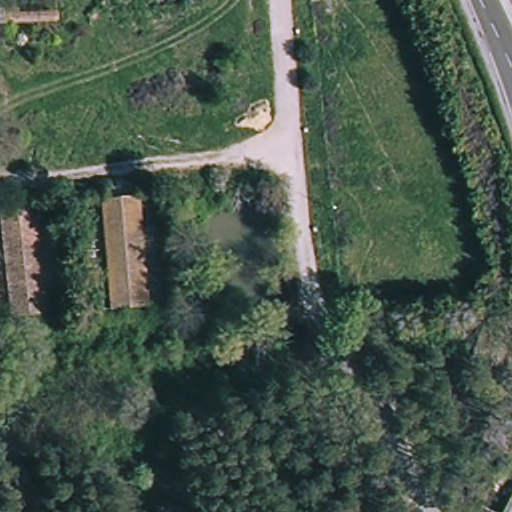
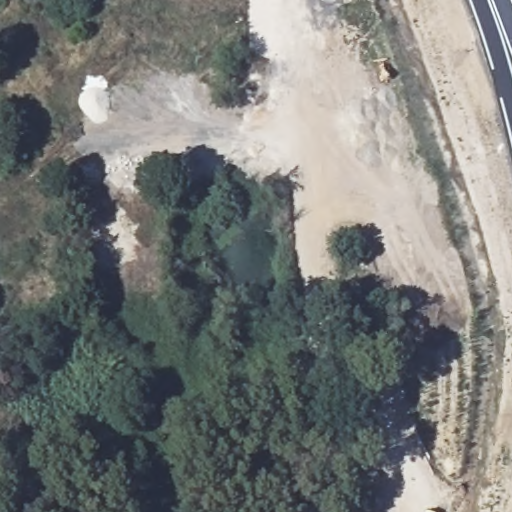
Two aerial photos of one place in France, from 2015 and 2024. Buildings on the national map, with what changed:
unchanged [(0,9),(53,5),(53,31),(0,34),(0,9)]
demolished [(95,197),(141,193),(150,302),(108,305),(95,197)]
demolished [(7,314),(0,263),(0,204),(33,202),(44,308),(7,314)]

